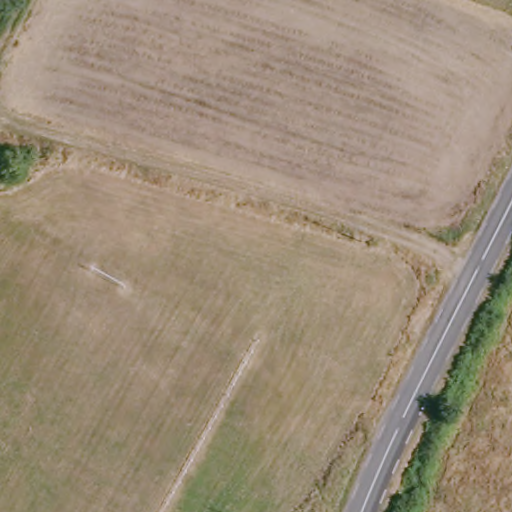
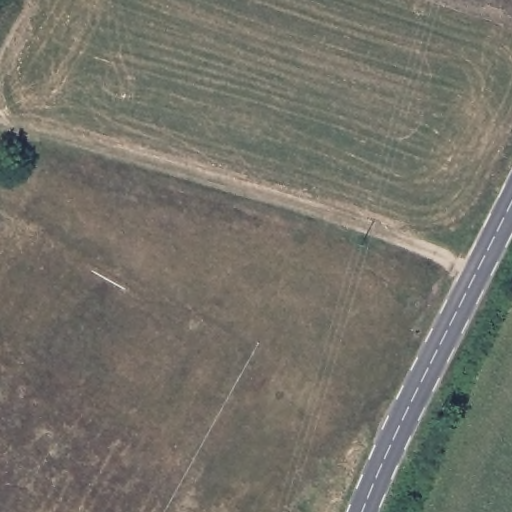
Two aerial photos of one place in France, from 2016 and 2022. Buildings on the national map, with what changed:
[]

